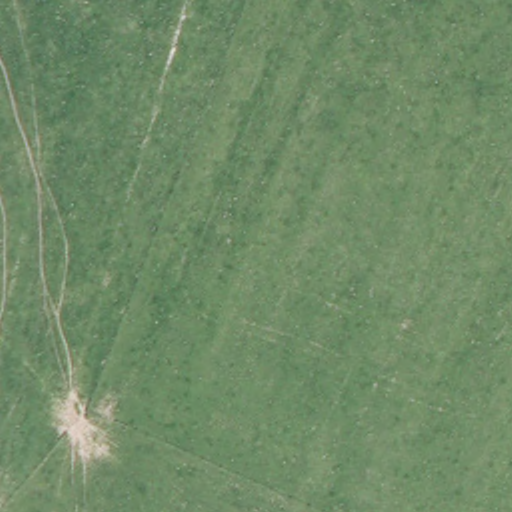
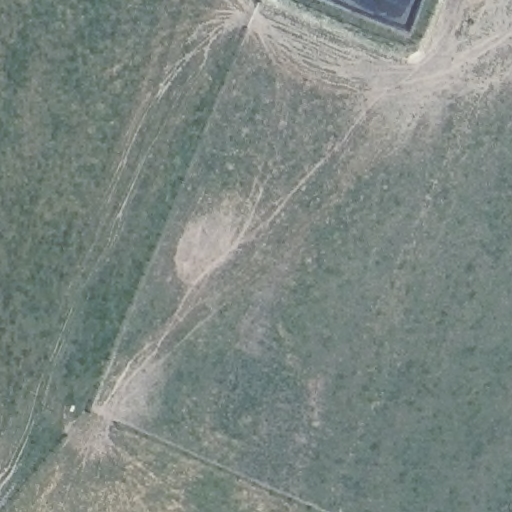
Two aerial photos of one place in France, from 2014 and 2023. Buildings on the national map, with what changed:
[]

